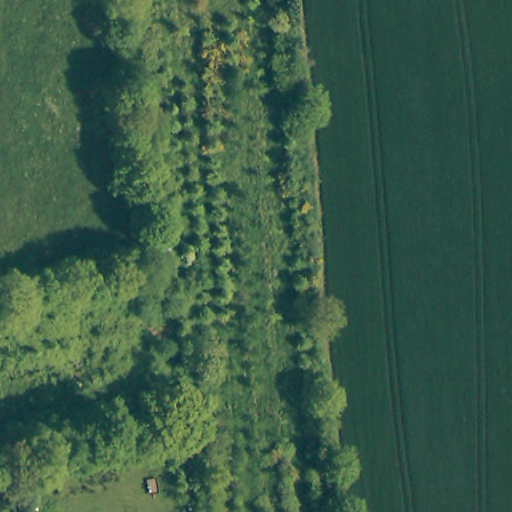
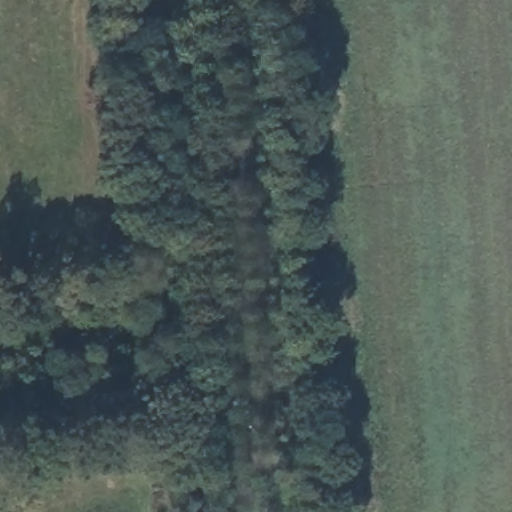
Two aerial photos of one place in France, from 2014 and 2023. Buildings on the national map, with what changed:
[]

